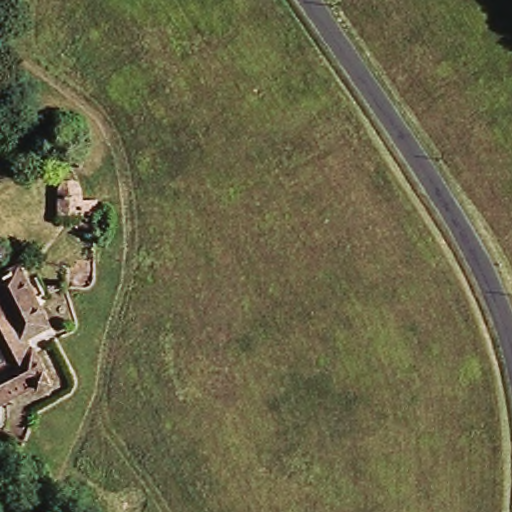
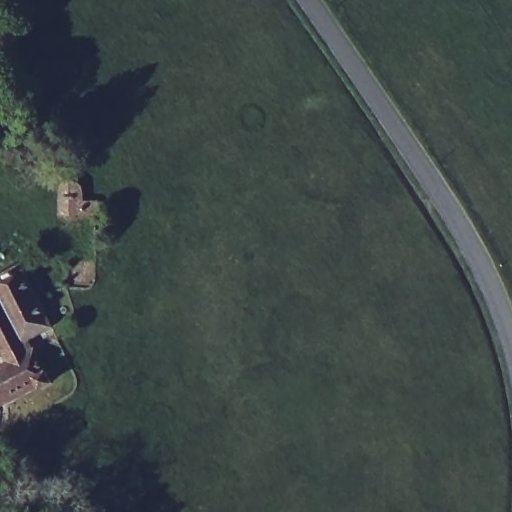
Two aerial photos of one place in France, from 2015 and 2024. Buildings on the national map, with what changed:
unchanged [(91,196),(91,209),(106,210),(106,220),(68,220),(68,191),(81,188),(88,190),(91,196)]
unchanged [(0,352),(0,274),(18,265),(51,329),(27,342),(33,355),(40,352),(56,386),(46,390),(43,386),(0,408),(0,355),(1,354),(0,352)]

